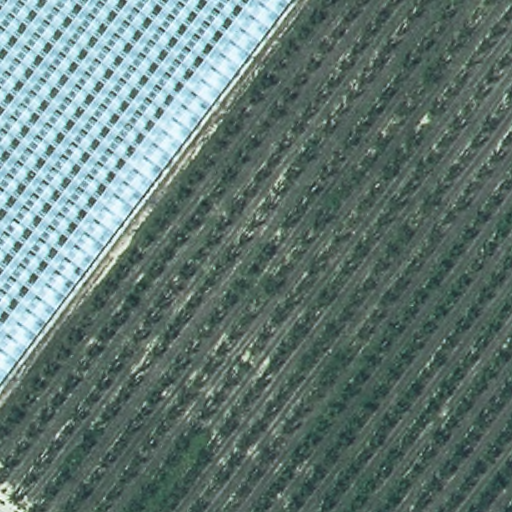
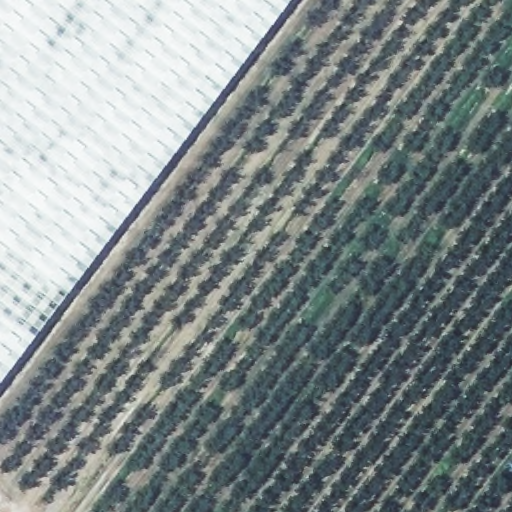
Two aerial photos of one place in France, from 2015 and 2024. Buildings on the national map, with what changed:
unchanged [(0,383),(0,0),(293,0),(0,383)]

